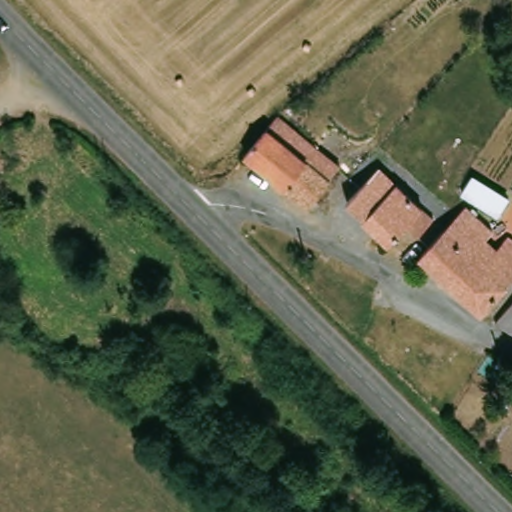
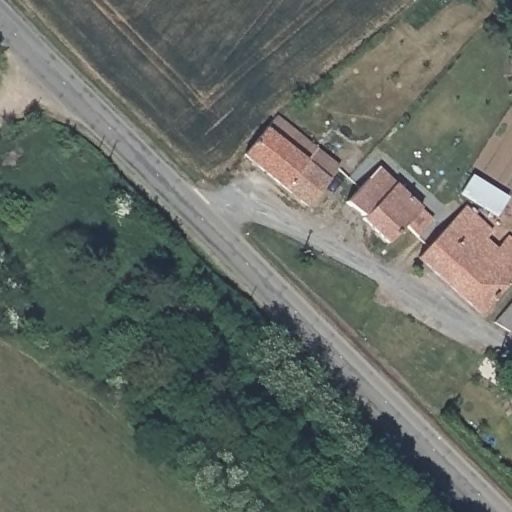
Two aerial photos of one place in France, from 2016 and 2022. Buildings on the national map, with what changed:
unchanged [(276,118),(336,166),(305,203),(245,151),(276,118)]
unchanged [(348,197),(371,172),(378,164),(432,215),(418,232),(407,222),(394,234),(391,238),(365,212),(348,197)]
unchanged [(471,172),(505,195),(496,210),(461,187),(471,172)]
unchanged [(496,231),(489,239),(499,248),(510,235),(512,237),(512,282),(485,312),(421,256),(466,207),(496,231)]
unchanged [(499,322),(512,309),(512,331),(499,322)]

